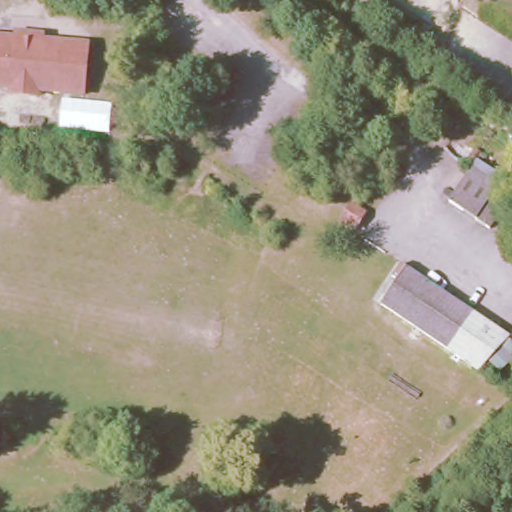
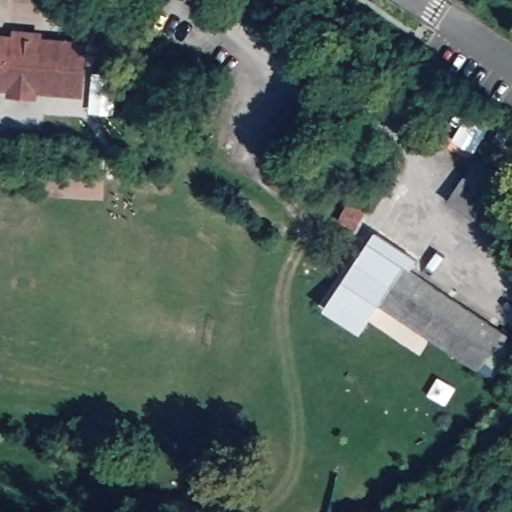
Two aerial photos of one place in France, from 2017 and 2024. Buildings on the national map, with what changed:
unchanged [(10,32),(10,23),(42,26),(42,36),(85,39),(82,94),(37,90),(36,102),(8,99),(9,89),(0,88),(0,31),(10,32)]
unchanged [(512,190),(490,229),(443,200),(474,152),(512,175),(512,190)]
new [(417,258),(407,273),(385,305),(380,303),(362,333),(324,310),(376,231),(417,258)]
unchanged [(407,273),(465,314),(479,323),(453,361),(440,351),(381,310),(407,273)]
unchanged [(453,361),(479,323),(503,336),(475,376),(453,361)]

